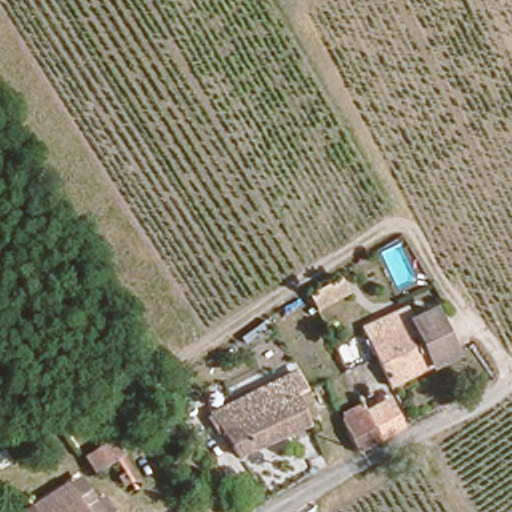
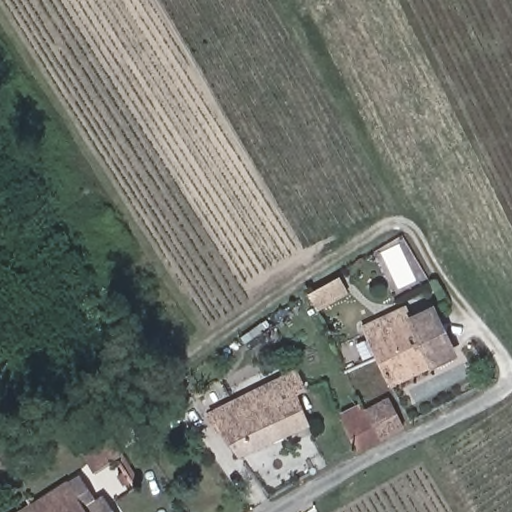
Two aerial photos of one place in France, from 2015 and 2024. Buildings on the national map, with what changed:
unchanged [(336,267),(344,281),(312,298),(304,283),(336,267)]
unchanged [(434,363),(394,382),(379,352),(364,325),(406,305),(412,317),(431,308),(443,332),(453,354),(434,363)]
unchanged [(294,424),(238,449),(209,407),(269,378),(275,387),(302,375),(304,382),(312,397),(303,401),(310,418),(294,424)]
unchanged [(339,417),(366,404),(386,393),(399,418),(379,431),(353,445),(339,417)]
unchanged [(122,455),(95,470),(84,451),(113,437),(122,455)]
unchanged [(96,491),(107,512),(34,512),(29,504),(65,481),(80,502),(96,491)]
unchanged [(34,512),(17,512),(29,504),(34,512)]

